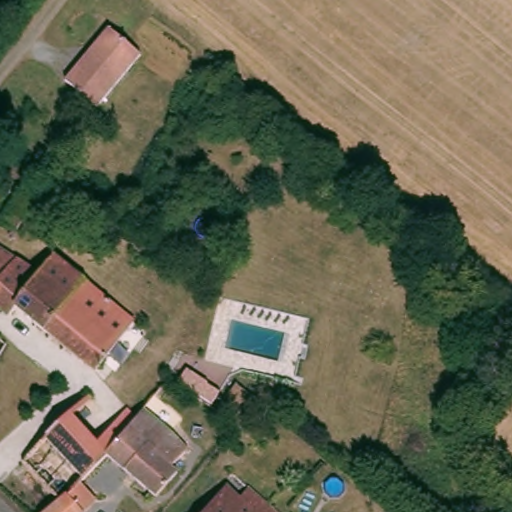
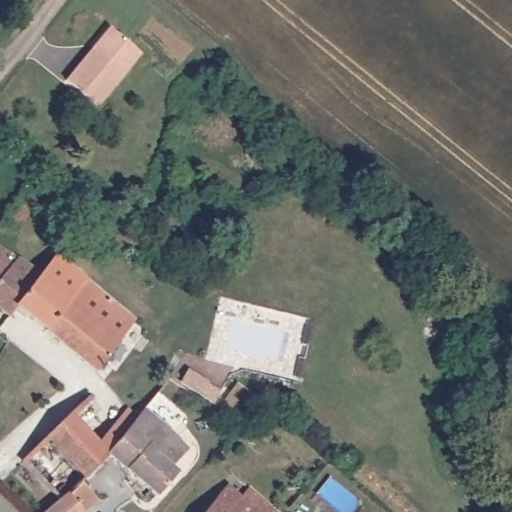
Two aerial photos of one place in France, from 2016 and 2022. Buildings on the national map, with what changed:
unchanged [(136,54),(132,59),(96,109),(83,100),(63,85),(70,76),(99,35),(104,29),(136,54)]
unchanged [(34,196),(11,224),(1,216),(24,189),(34,196)]
unchanged [(18,259),(0,286),(0,246),(18,259)]
unchanged [(55,255),(140,314),(105,367),(22,310),(19,308),(41,275),(55,255)]
unchanged [(41,275),(19,308),(22,310),(16,319),(0,308),(0,286),(18,259),(41,275)]
unchanged [(175,422),(195,440),(180,458),(185,462),(156,495),(105,452),(111,445),(72,411),(90,390),(119,414),(127,405),(138,415),(145,407),(170,428),(175,422)]
unchanged [(90,468),(65,497),(26,462),(72,411),(111,445),(105,452),(90,468)]
unchanged [(89,489),(99,498),(86,512),(52,512),(65,497),(90,468),(100,477),(89,489)]
unchanged [(232,497),(240,488),(272,512),(201,512),(218,491),(220,487),(232,497)]

